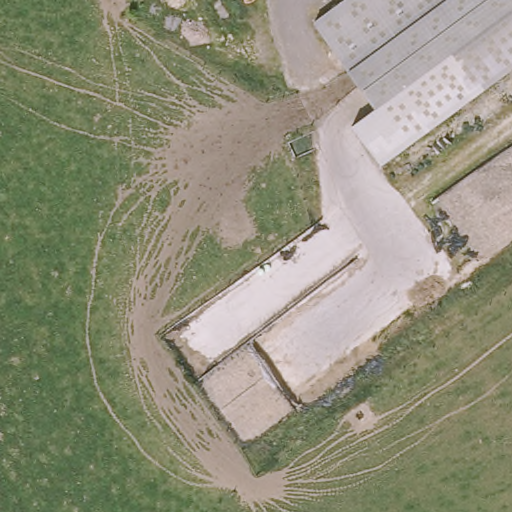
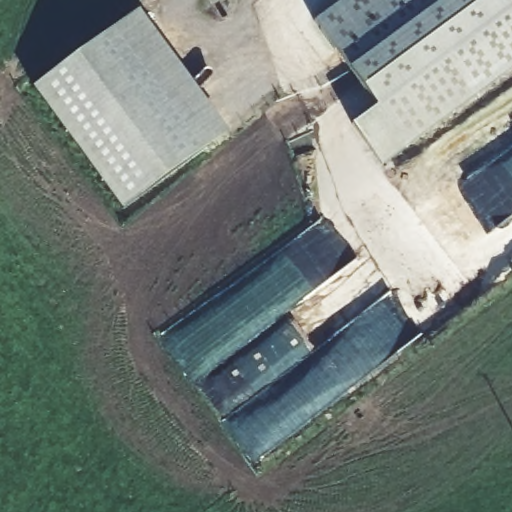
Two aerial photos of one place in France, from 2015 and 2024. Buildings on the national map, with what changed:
unchanged [(377,108),(314,22),(345,0),(512,0),(512,70),(382,166),(354,124),(377,108)]
new [(230,139),(125,219),(34,88),(142,15),(230,139)]

